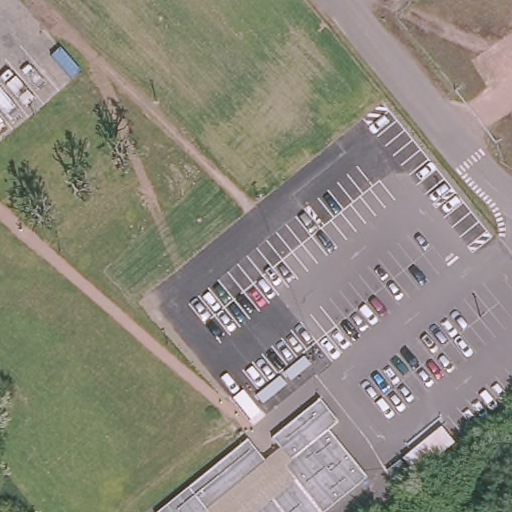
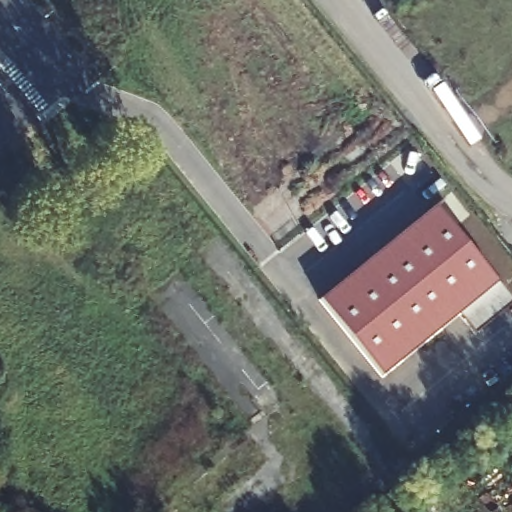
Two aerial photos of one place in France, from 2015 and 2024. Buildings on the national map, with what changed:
new [(320,300),(436,206),(512,299),(512,302),(475,332),(460,314),(382,376),(320,300)]
demolished [(281,467),(288,461),(270,439),(316,400),(335,423),(325,431),(364,478),(322,512),(255,512),(292,481),(281,467)]
demolished [(263,463),(205,511),(205,512),(158,512),(245,441),(263,463)]

